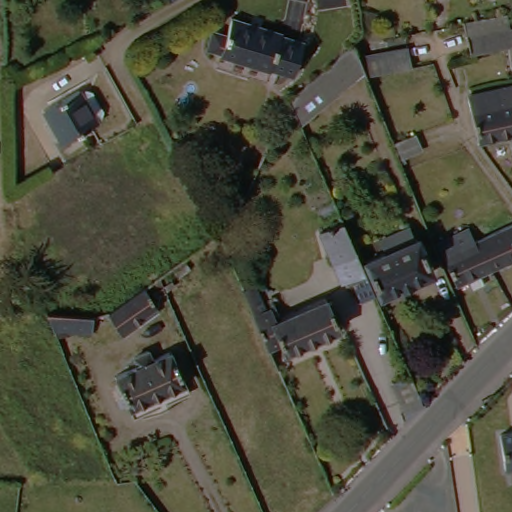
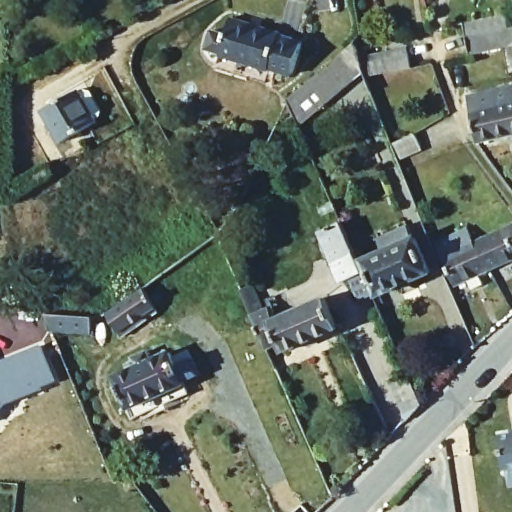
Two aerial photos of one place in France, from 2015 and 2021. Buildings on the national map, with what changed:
unchanged [(179,0),(178,1),(177,0),(179,0)]
unchanged [(274,31),(273,35),(289,39),(278,71),(263,66),(262,69),(212,52),(224,16),(274,31)]
unchanged [(473,51),(469,33),(512,24),(512,42),(473,51)]
unchanged [(413,66),(369,74),(305,124),(288,101),(353,45),(358,56),(409,45),(413,66)]
unchanged [(509,63),(506,49),(509,49),(512,48),(512,62),(509,63)]
unchanged [(512,86),(512,134),(478,144),(476,144),(463,99),(512,86)]
unchanged [(86,92),(98,115),(89,120),(92,124),(58,143),(39,111),(74,91),(78,96),(86,92)]
unchanged [(423,140),(429,156),(411,163),(413,168),(408,170),(400,148),(423,140)]
unchanged [(341,284),(321,234),(343,225),(348,237),(365,275),(341,284)]
unchanged [(495,270),(483,242),(512,229),(512,262),(495,270)]
unchanged [(365,264),(385,256),(379,241),(409,230),(415,243),(418,242),(431,273),(379,297),(365,264)]
unchanged [(460,287),(440,242),(446,239),(448,244),(474,232),(479,244),(483,242),(495,270),(494,271),(460,287)]
unchanged [(353,320),(298,343),(294,335),(284,339),(281,340),(258,284),(260,283),(270,279),(281,304),(287,302),(292,313),(326,300),(333,297),(342,294),(351,317),(353,320)]
unchanged [(157,309),(119,333),(107,315),(144,290),(157,309)]
unchanged [(91,317),(92,336),(53,334),(44,314),(91,317)]
unchanged [(446,337),(463,329),(474,352),(460,366),(446,337)]
new [(55,382),(5,404),(0,412),(0,364),(41,346),(55,382)]
unchanged [(133,418),(126,405),(119,408),(115,400),(123,397),(113,377),(135,366),(130,357),(145,350),(150,359),(168,350),(188,391),(133,418)]
unchanged [(394,390),(412,382),(420,399),(404,416),(394,390)]
unchanged [(512,438),(512,472),(499,475),(494,442),(512,438)]

